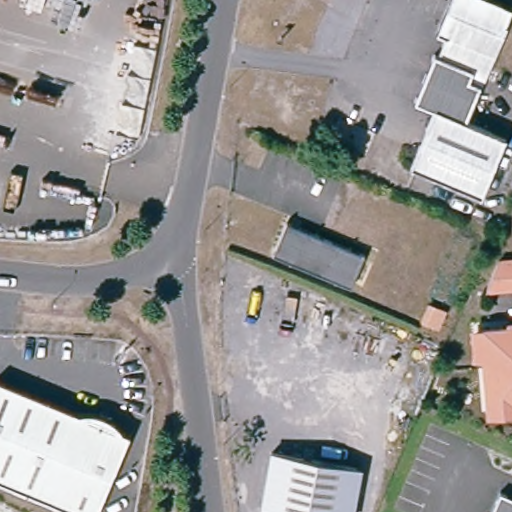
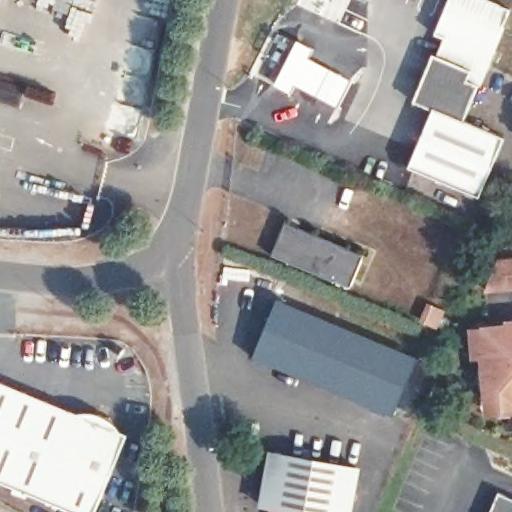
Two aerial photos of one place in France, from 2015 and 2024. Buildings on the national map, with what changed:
unchanged [(462,116),(503,133),(479,192),(408,163),(432,105),(413,97),(429,58),(432,50),(437,52),(444,34),(436,31),(448,0),(496,0),(508,5),(478,78),(462,116)]
unchanged [(364,255),(350,287),(272,254),(286,222),(364,255)]
unchanged [(512,283),(487,284),(500,257),(512,256),(512,283)]
new [(273,297),(416,356),(392,415),(249,356),(273,297)]
unchanged [(444,311),(437,327),(425,322),(432,306),(444,311)]
unchanged [(510,399),(482,401),(481,374),(488,374),(487,354),(479,354),(478,328),(505,327),(505,325),(512,324),(512,403),(510,403),(510,399)]
unchanged [(78,408),(86,407),(94,408),(102,410),(109,414),(115,419),(121,426),(128,429),(93,512),(92,512),(0,474),(0,376),(78,408)]
unchanged [(358,467),(349,512),(315,512),(261,501),(271,449),(358,467)]
unchanged [(496,490),(512,497),(512,512),(486,512),(496,490)]

